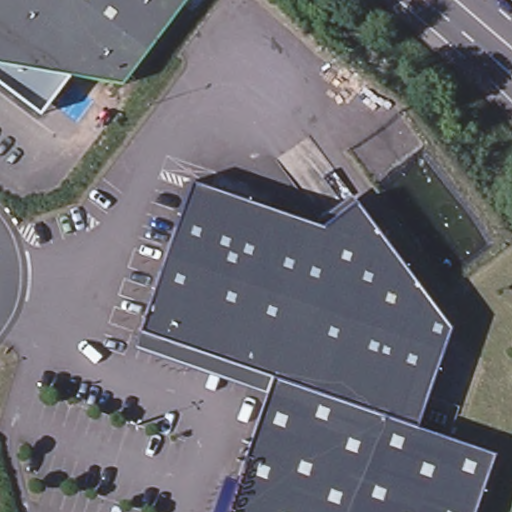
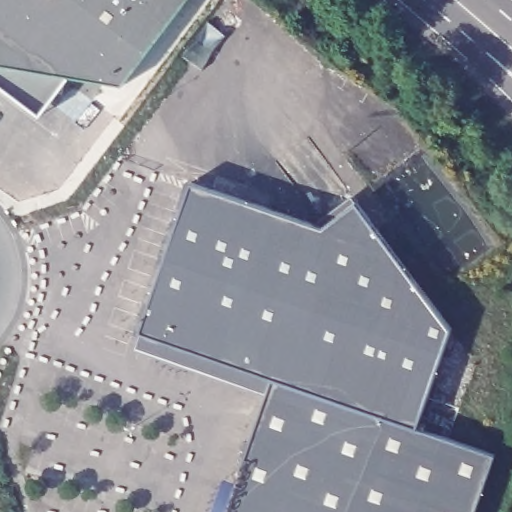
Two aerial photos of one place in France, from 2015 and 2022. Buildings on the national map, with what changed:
unchanged [(0,64),(0,0),(183,0),(121,84),(0,64)]
unchanged [(188,180),(319,225),(353,200),(449,326),(415,425),(493,452),(472,512),(223,512),(270,375),(137,331),(188,180)]

